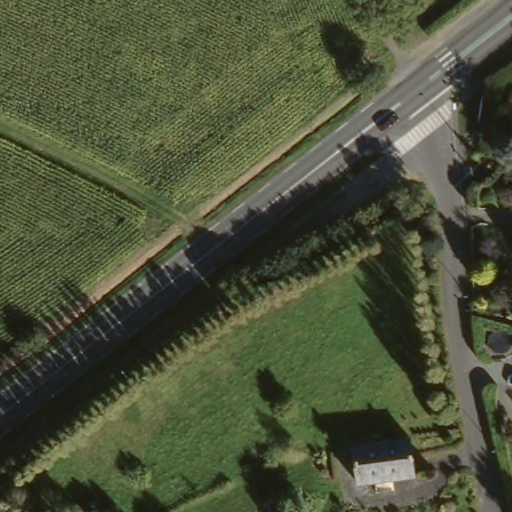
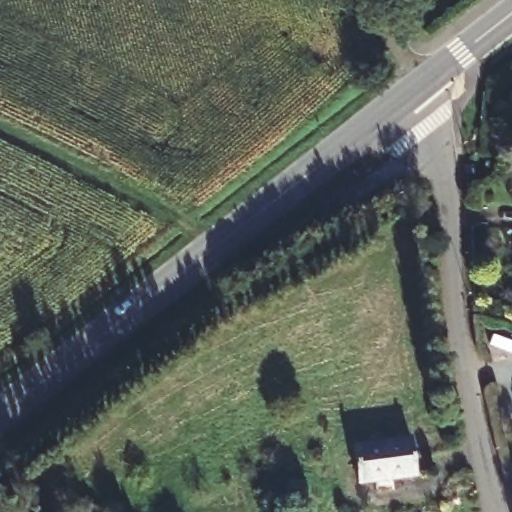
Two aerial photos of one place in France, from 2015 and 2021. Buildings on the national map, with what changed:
unchanged [(409,432),(414,475),(361,478),(356,435),(409,432)]

